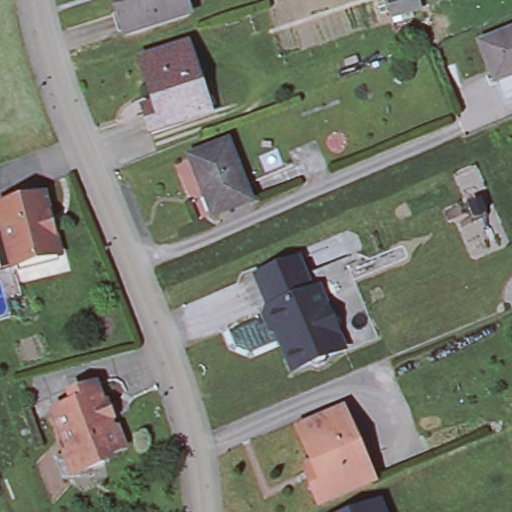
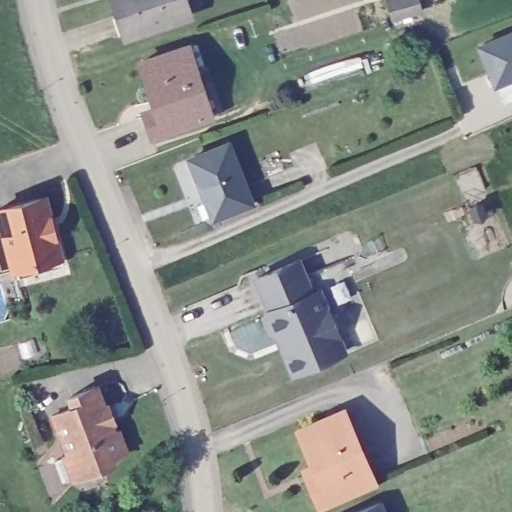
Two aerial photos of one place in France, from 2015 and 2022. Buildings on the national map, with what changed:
unchanged [(187,14),(121,35),(110,0),(182,0),(187,14)]
unchanged [(420,6),(392,17),(385,0),(418,0),(420,6)]
unchanged [(475,45),(512,30),(512,99),(506,102),(500,104),(491,83),(475,45)]
unchanged [(219,111),(208,114),(147,135),(140,110),(151,106),(136,61),(185,45),(197,84),(209,80),(219,111)]
unchanged [(214,217),(211,211),(190,158),(230,142),(250,195),(253,202),(214,217)]
unchanged [(19,276),(17,269),(15,269),(0,212),(0,210),(46,198),(61,257),(59,258),(60,265),(19,276)]
unchanged [(276,334),(271,331),(265,318),(267,312),(270,311),(257,278),(298,261),(311,293),(318,291),(327,310),(336,313),(339,320),(281,344),(276,334)]
unchanged [(339,320),(341,326),(337,335),(345,351),(327,359),(324,365),(317,368),(310,365),(293,372),(281,344),(339,320)]
unchanged [(55,413),(75,405),(71,395),(97,385),(106,408),(110,407),(115,418),(110,420),(115,432),(120,430),(126,449),(105,457),(107,463),(85,472),(73,476),(65,454),(70,452),(55,413)]
unchanged [(298,430),(342,410),(364,460),(372,480),(365,484),(320,504),(310,482),(305,469),(314,465),(298,430)]
unchanged [(386,512),(353,512),(381,501),(386,512)]

